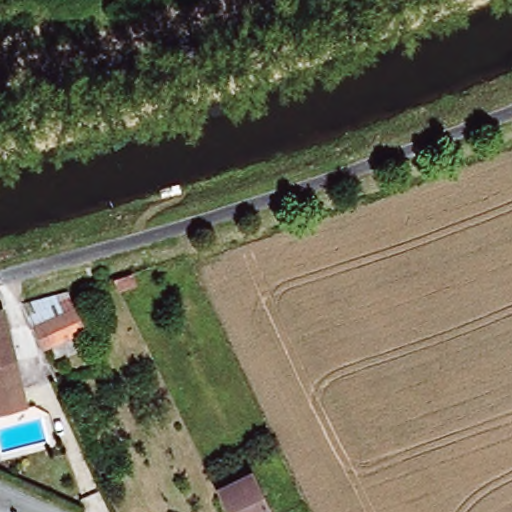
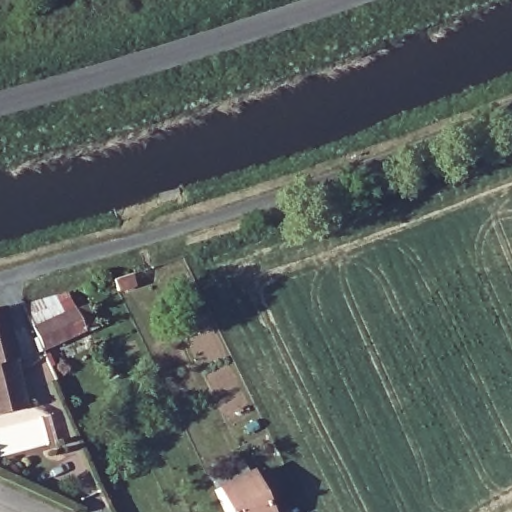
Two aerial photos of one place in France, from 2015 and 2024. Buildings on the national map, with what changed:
unchanged [(85,308),(94,329),(41,352),(22,310),(67,299),(73,313),(85,308)]
unchanged [(13,313),(21,344),(10,348),(22,408),(0,412),(0,316),(13,313)]
unchanged [(220,493),(252,478),(269,512),(229,512),(220,493)]

